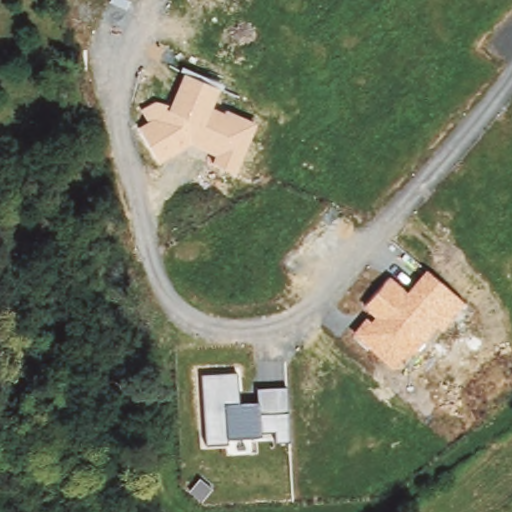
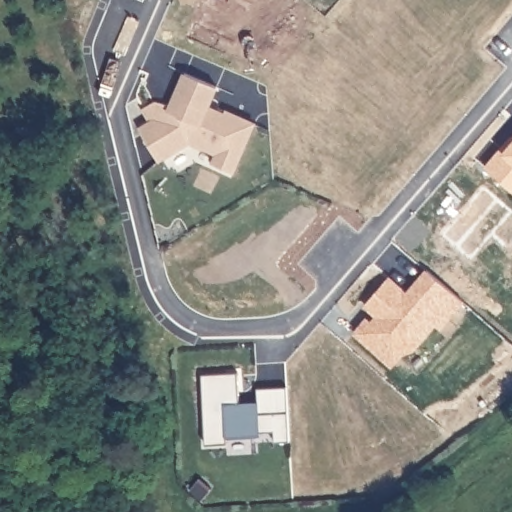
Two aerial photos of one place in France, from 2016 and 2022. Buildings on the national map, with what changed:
unchanged [(190,144),(160,162),(139,126),(148,121),(141,110),(156,101),(169,104),(182,71),(219,87),(211,106),(224,112),(226,108),(257,123),(236,174),(211,164),(214,155),(190,144)]
new [(484,165),(499,148),(503,151),(512,141),(512,190),(484,165)]
unchanged [(352,333),(366,315),(371,320),(375,315),(364,307),(389,276),(406,291),(426,268),(465,303),(442,330),(434,323),(391,366),(352,333)]
unchanged [(260,430),(260,435),(227,437),(226,443),(205,445),(202,376),(236,373),(238,403),(257,402),(257,390),(285,388),(288,439),(275,440),(274,430),(260,430)]

